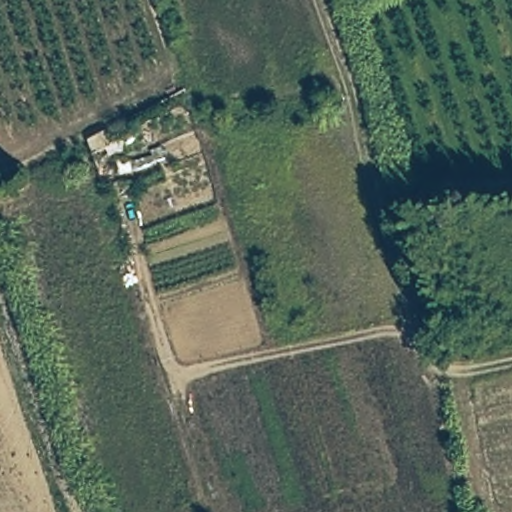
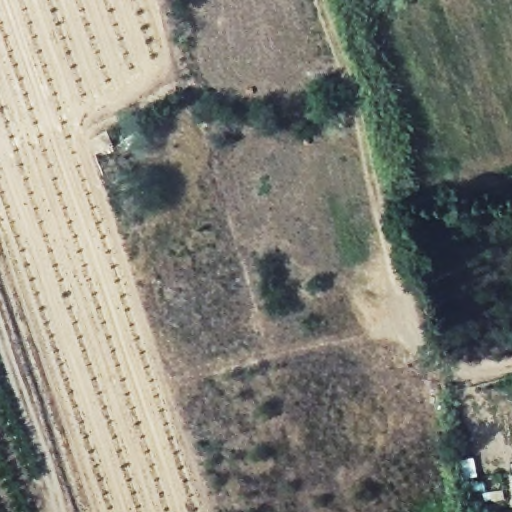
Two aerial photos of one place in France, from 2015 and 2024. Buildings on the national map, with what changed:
unchanged [(117,148),(103,156),(97,149),(108,135),(117,148)]

